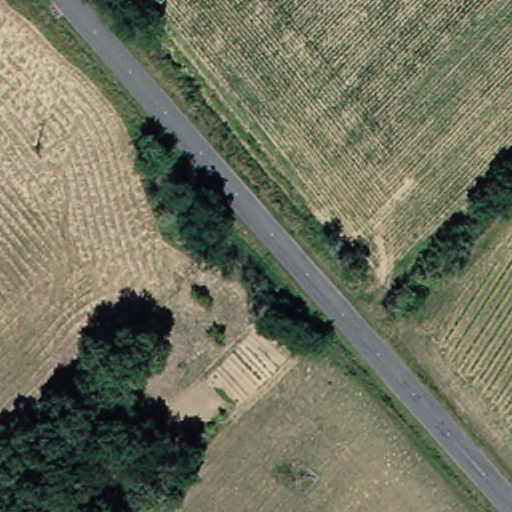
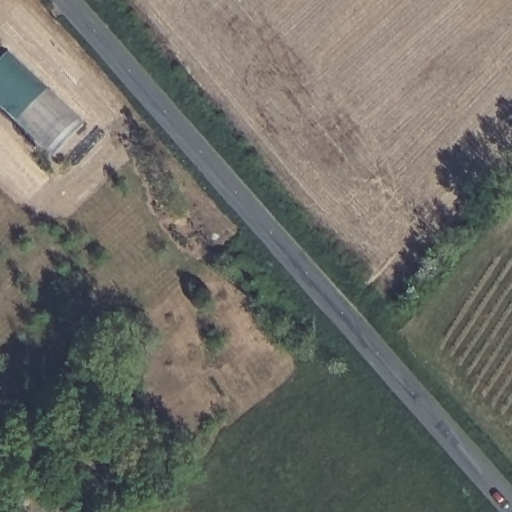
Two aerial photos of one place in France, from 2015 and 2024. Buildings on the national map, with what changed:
new [(0,59),(7,51),(79,123),(48,157),(0,109),(0,59)]

